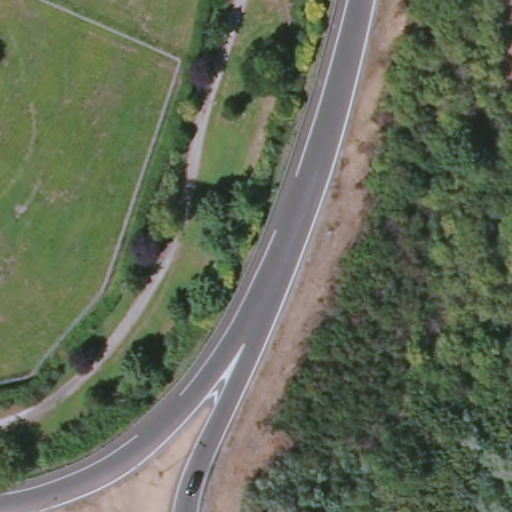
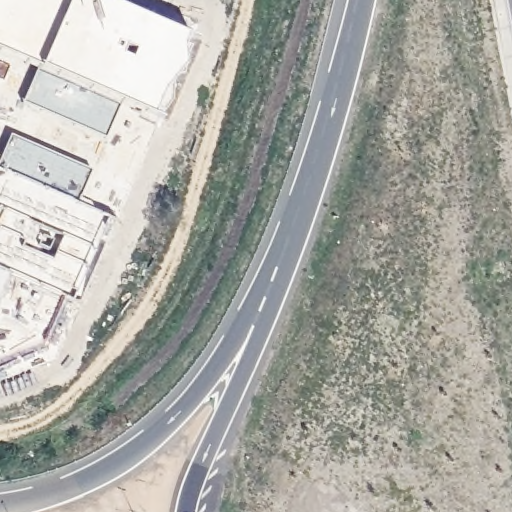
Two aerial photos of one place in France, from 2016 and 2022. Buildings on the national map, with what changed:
new [(0,43),(0,0),(134,0),(197,27),(163,110),(0,43)]
new [(13,131),(90,170),(79,196),(108,212),(76,294),(14,271),(0,306),(0,163),(13,131)]

